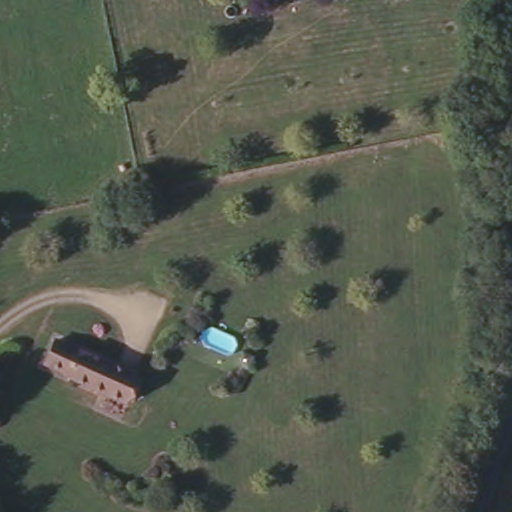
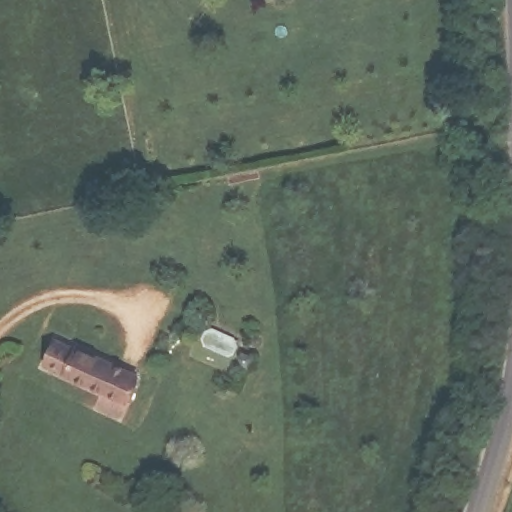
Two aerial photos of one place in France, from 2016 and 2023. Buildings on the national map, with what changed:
unchanged [(65,335),(140,379),(124,409),(48,367),(65,335)]

